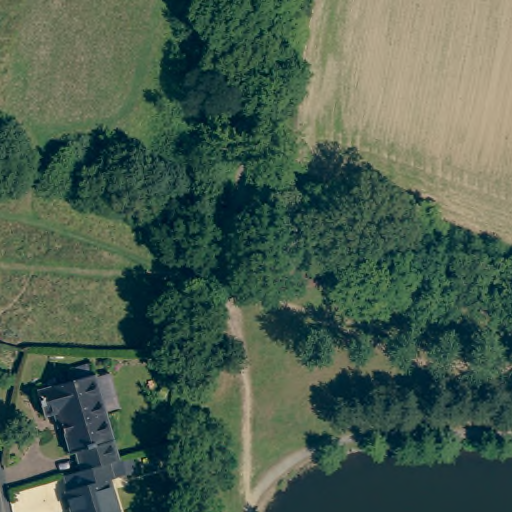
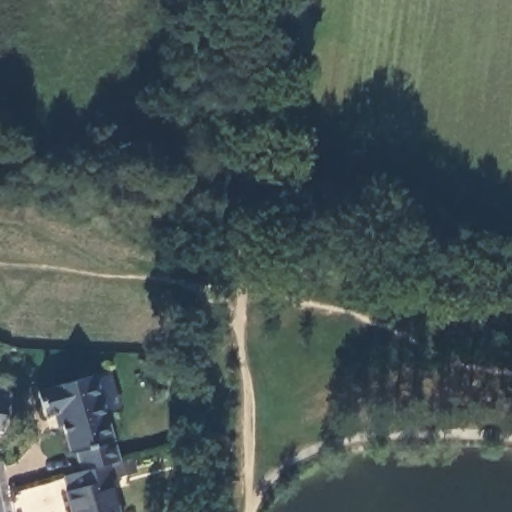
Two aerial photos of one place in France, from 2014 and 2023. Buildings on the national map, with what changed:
unchanged [(80,449),(68,409),(59,411),(51,385),(104,371),(104,373),(119,370),(125,393),(110,397),(127,456),(119,458),(90,466),(85,448),(80,449)]
unchanged [(77,486),(73,471),(90,466),(119,458),(123,473),(120,474),(130,512),(83,512),(75,487),(77,486)]

